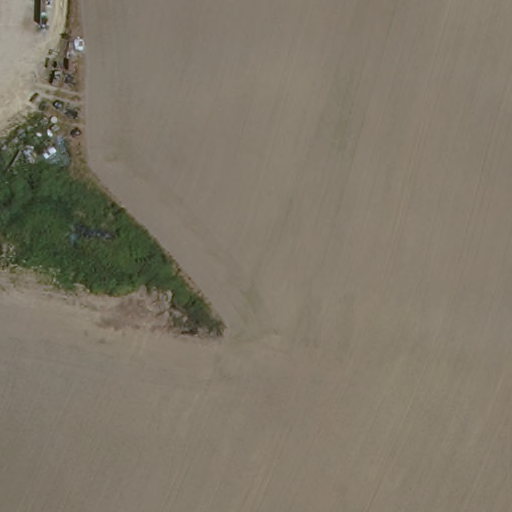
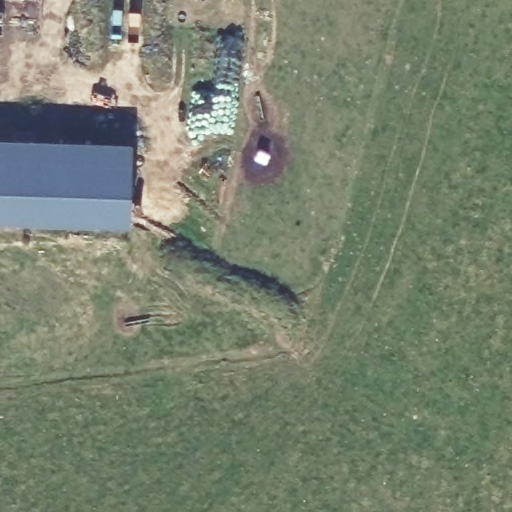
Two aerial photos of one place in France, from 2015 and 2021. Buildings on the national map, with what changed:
new [(0,221),(0,139),(132,145),(130,226),(0,221)]

